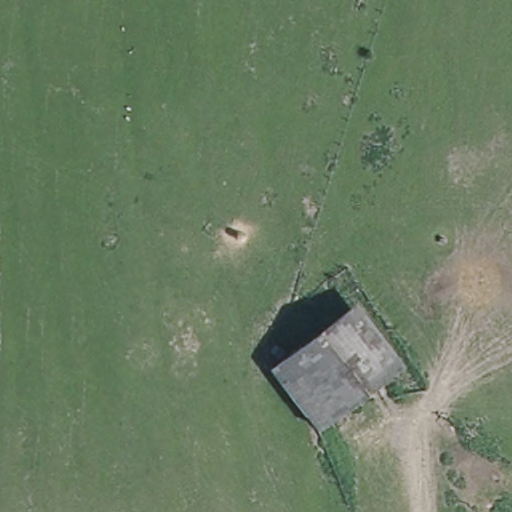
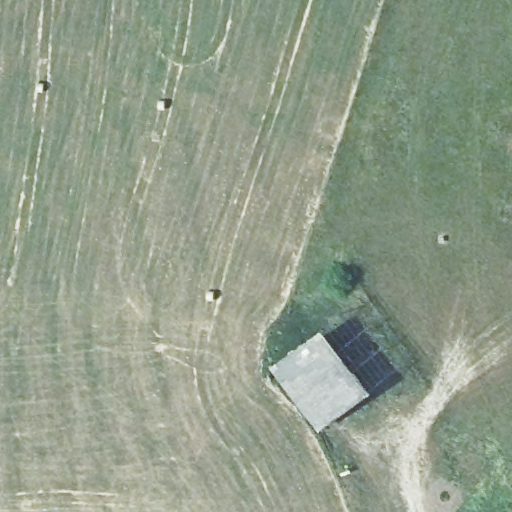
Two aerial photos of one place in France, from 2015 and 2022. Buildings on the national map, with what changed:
unchanged [(270,361),(358,295),(409,356),(318,428),(270,361)]

